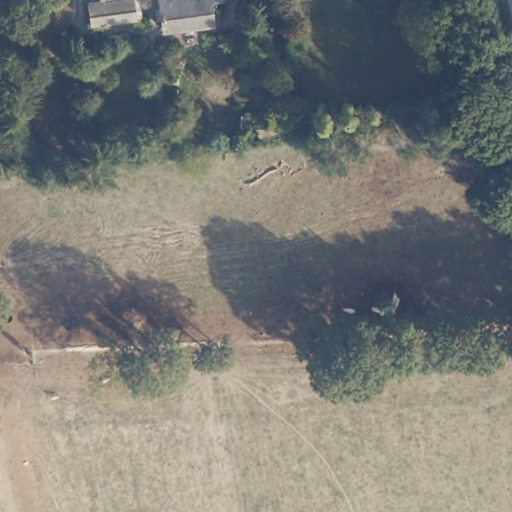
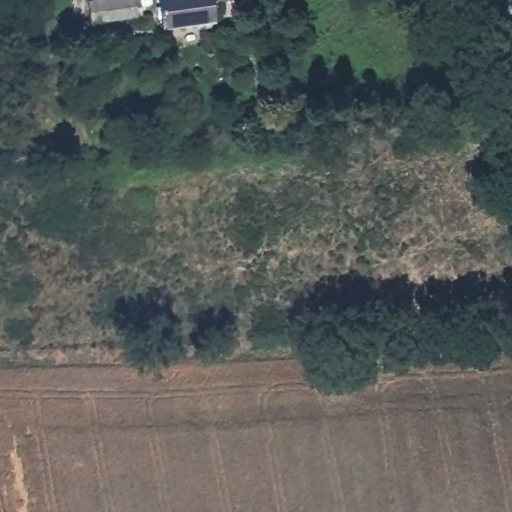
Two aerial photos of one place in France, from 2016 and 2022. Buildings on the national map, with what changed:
unchanged [(93,22),(91,1),(103,0),(135,0),(137,16),(93,22)]
unchanged [(160,29),(156,0),(205,0),(207,23),(160,29)]
unchanged [(479,77),(481,92),(450,96),(447,81),(479,77)]
unchanged [(283,108),(285,133),(258,136),(255,111),(283,108)]

